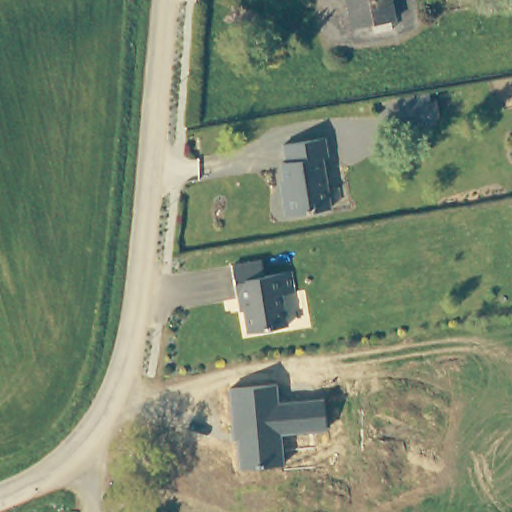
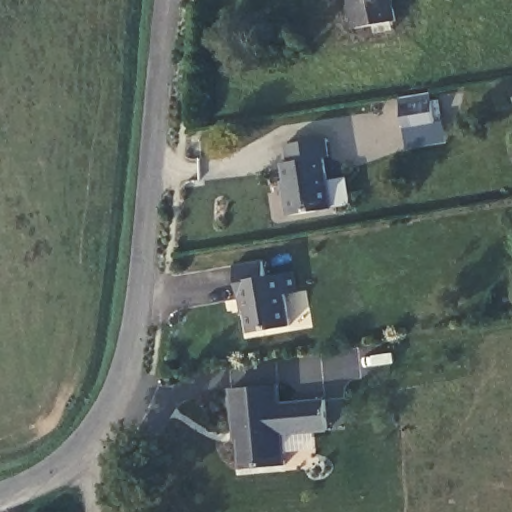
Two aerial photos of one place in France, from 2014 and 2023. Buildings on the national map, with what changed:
unchanged [(353,31),(348,0),(389,0),(392,25),(353,31)]
new [(435,122),(442,121),(446,143),(407,148),(398,98),(430,93),(435,122)]
demolished [(450,117),(418,122),(414,100),(446,95),(450,117)]
unchanged [(333,163),(325,162),(326,218),(281,218),(281,196),(286,196),(285,164),(290,164),(290,144),(332,144),(333,163)]
unchanged [(268,272),(297,269),(300,292),(288,293),(292,329),(250,335),(245,302),(240,302),(235,266),(266,261),(268,272)]
unchanged [(232,390),(275,386),(277,405),(324,399),(326,431),(280,437),(281,466),(241,470),(232,390)]

